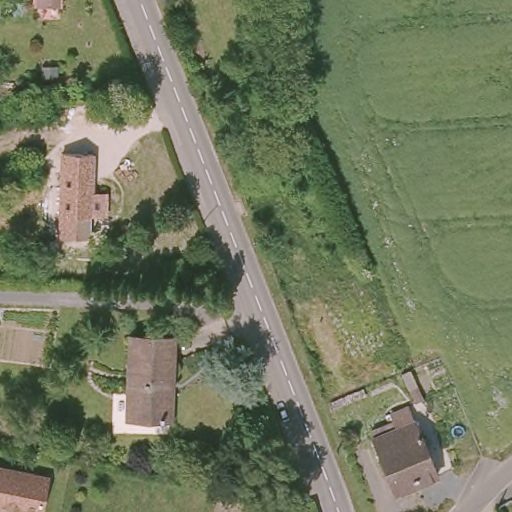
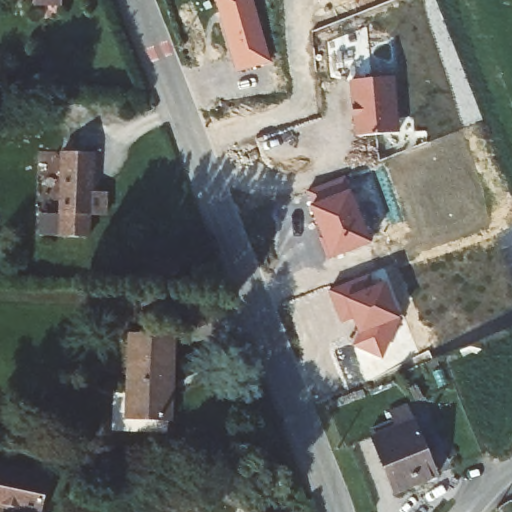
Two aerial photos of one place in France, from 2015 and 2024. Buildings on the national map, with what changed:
new [(253,0),(272,62),(237,71),(216,0),(253,0)]
new [(350,80),(395,77),(400,132),(354,135),(350,80)]
unchanged [(88,153),(88,191),(103,191),(102,215),(57,214),(57,153),(88,153)]
new [(331,259),(310,205),(305,190),(345,175),(350,190),(372,243),(331,259)]
unchanged [(91,215),(90,238),(59,238),(57,214),(91,215)]
new [(327,290),(368,275),(372,286),(385,281),(400,318),(382,358),(353,345),(359,332),(353,318),(341,323),(327,290)]
unchanged [(123,416),(128,335),(170,336),(170,338),(168,363),(166,418),(123,416)]
unchanged [(392,412),(411,406),(417,421),(437,477),(394,493),(372,436),(398,427),(392,412)]
unchanged [(0,464),(49,473),(43,512),(13,512),(0,510),(0,464)]

